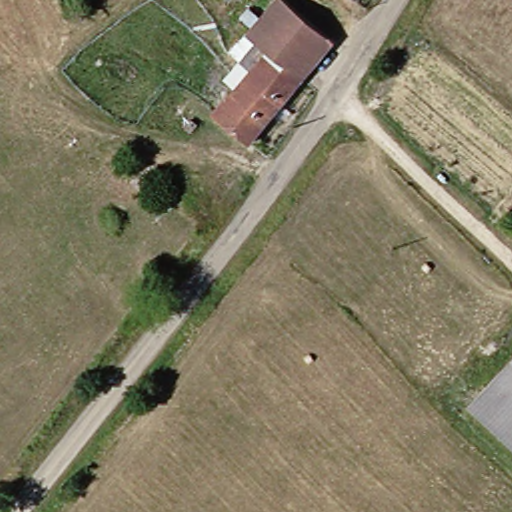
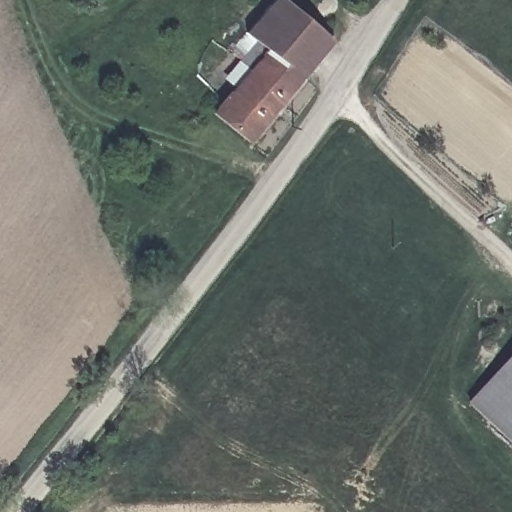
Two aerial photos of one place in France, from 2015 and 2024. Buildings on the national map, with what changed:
unchanged [(218,113),(265,57),(232,27),(228,24),(249,0),(272,0),(329,45),(245,141),(215,116),(218,113)]
unchanged [(489,378),(512,350),(512,398),(489,378)]
unchanged [(464,408),(489,378),(512,398),(512,449),(464,408)]

